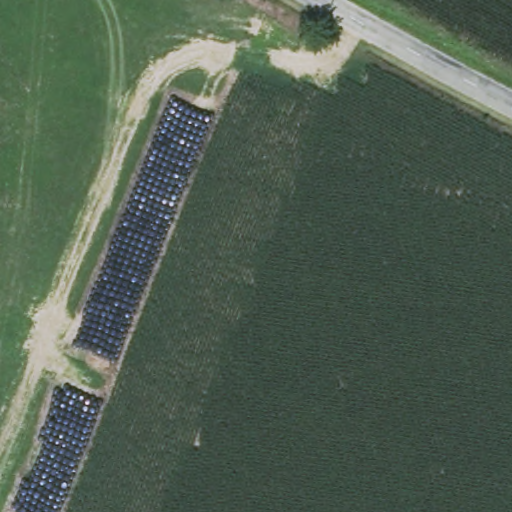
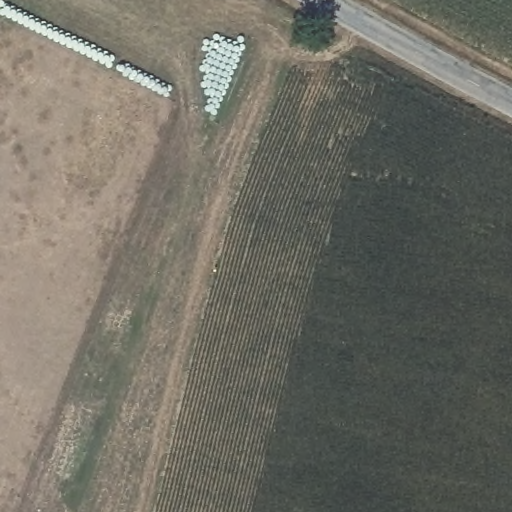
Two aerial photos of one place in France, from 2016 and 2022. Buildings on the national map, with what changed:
[]

